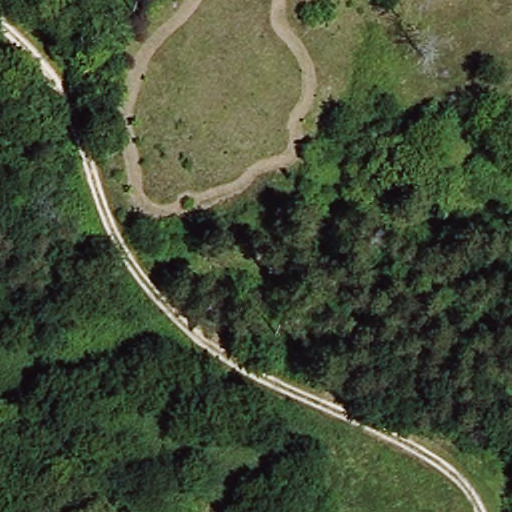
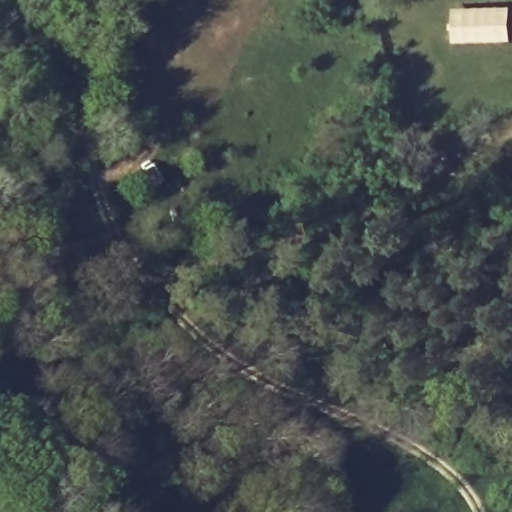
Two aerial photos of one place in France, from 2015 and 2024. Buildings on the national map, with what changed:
new [(450,8),(510,6),(512,40),(452,42),(450,8)]

